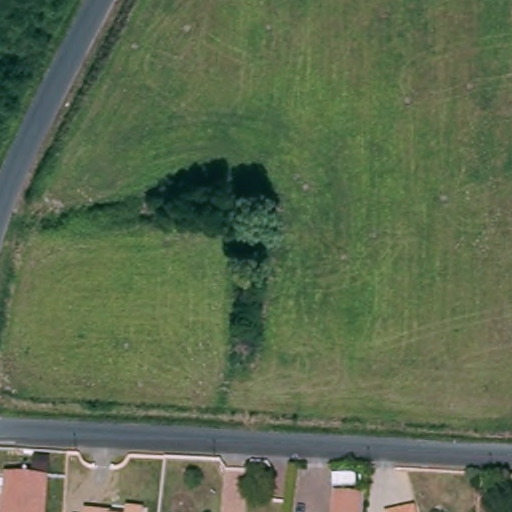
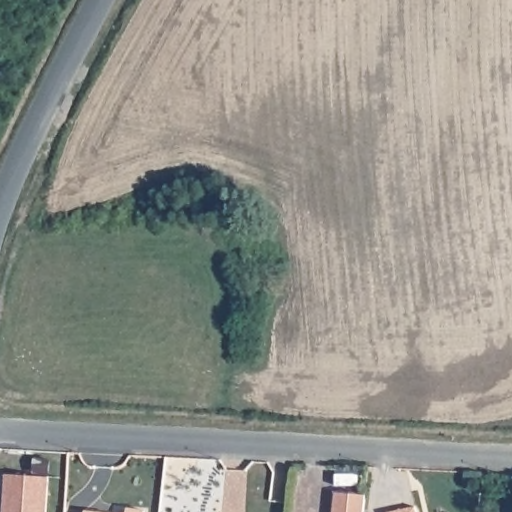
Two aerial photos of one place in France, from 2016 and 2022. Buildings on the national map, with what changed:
unchanged [(7,474),(49,477),(47,512),(5,512),(7,474)]
unchanged [(340,490),(369,493),(368,512),(338,512),(340,490)]
unchanged [(133,509),(150,510),(150,512),(133,512),(133,509)]
unchanged [(414,510),(414,512),(407,512),(414,510)]
unchanged [(90,511),(96,512),(90,512),(90,511)]

